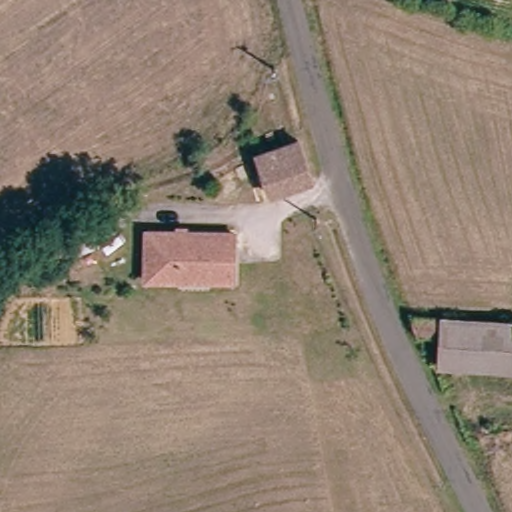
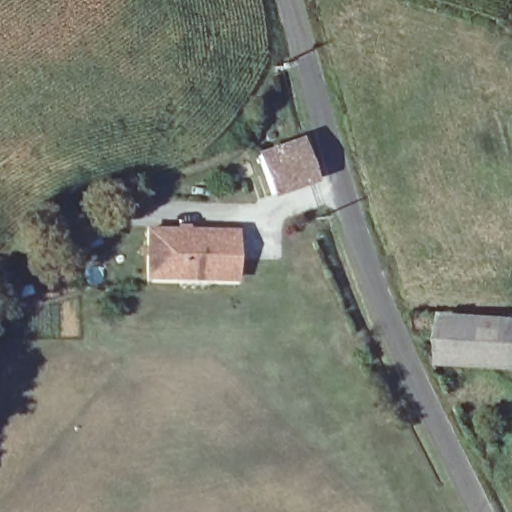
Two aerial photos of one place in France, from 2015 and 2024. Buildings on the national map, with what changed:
unchanged [(251,159),(304,142),(313,180),(304,183),(264,196),(251,159)]
unchanged [(245,244),(239,288),(224,286),(216,285),(216,280),(217,274),(207,272),(186,270),(184,281),(152,276),(158,230),(245,241),(245,244)]
unchanged [(423,352),(400,310),(512,312),(512,352),(423,352)]

